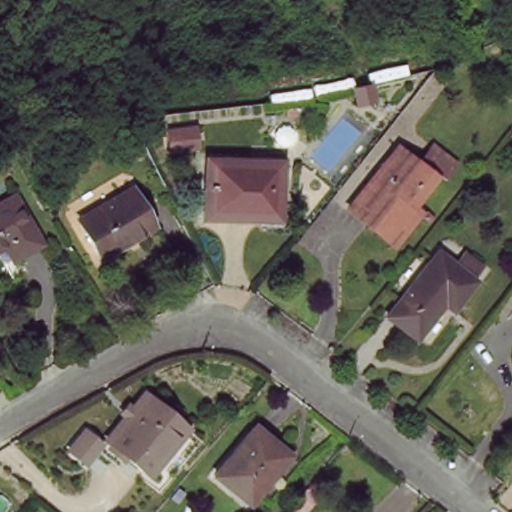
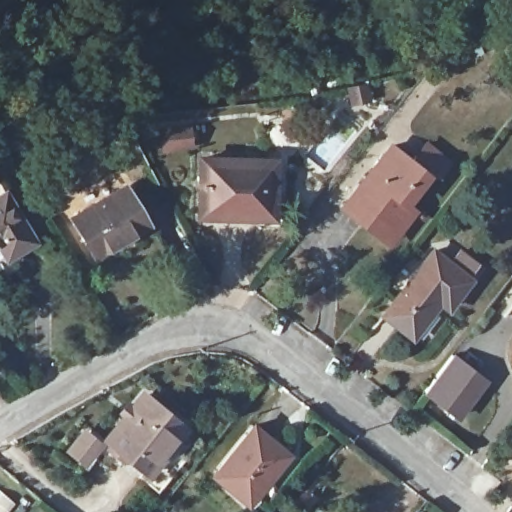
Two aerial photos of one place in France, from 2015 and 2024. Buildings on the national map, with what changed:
unchanged [(342,84),(346,97),(330,102),(326,89),(342,84)]
unchanged [(349,217),(336,207),(383,143),(405,159),(418,142),(442,159),(432,172),(420,165),(418,169),(422,171),(399,201),(410,209),(395,231),(385,245),(349,217)]
unchanged [(200,212),(200,165),(267,162),(271,209),(200,212)]
unchanged [(95,252),(72,216),(123,183),(147,220),(95,252)]
unchanged [(0,193),(30,239),(0,258),(0,193)]
unchanged [(461,273),(465,277),(442,308),(432,301),(407,336),(378,315),(428,248),(440,257),(451,245),(459,252),(470,261),(461,273)]
unchanged [(510,306),(512,303),(512,308),(510,306)]
new [(453,355),(488,382),(458,422),(422,392),(453,355)]
unchanged [(182,420),(145,467),(105,437),(142,390),(182,420)]
unchanged [(287,452),(251,500),(217,473),(254,425),(287,452)]

